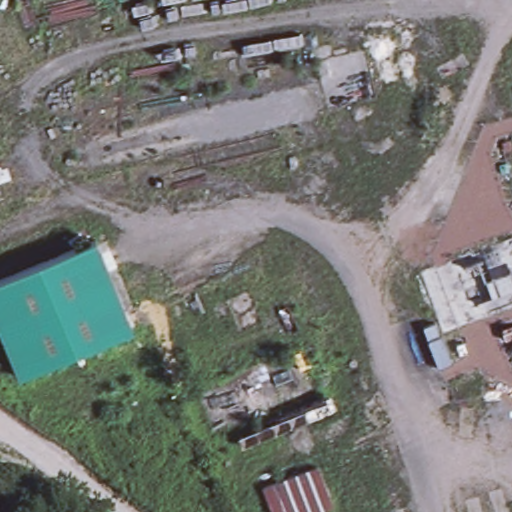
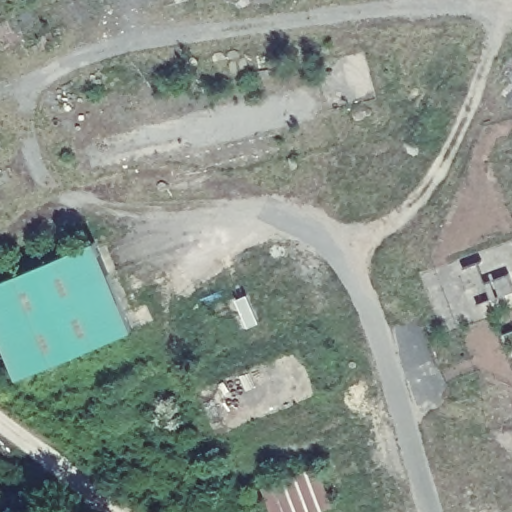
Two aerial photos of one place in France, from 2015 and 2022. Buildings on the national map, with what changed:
unchanged [(427,269),(512,237),(512,305),(449,330),(427,269)]
unchanged [(101,261),(103,265),(134,332),(22,380),(0,330),(0,286),(95,245),(101,261)]

